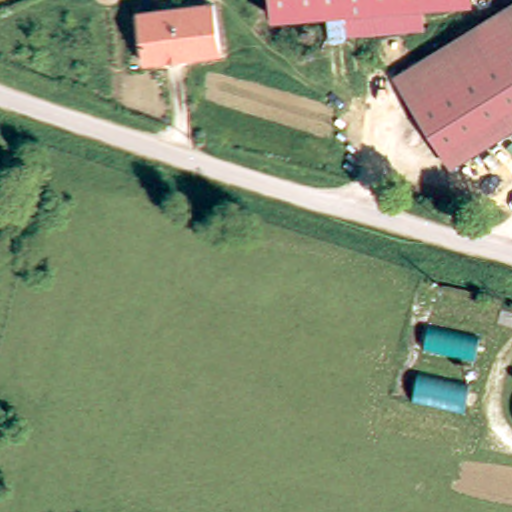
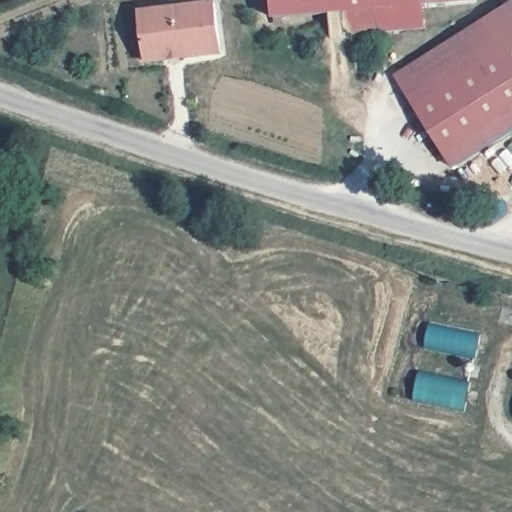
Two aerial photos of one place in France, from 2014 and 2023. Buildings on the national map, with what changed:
unchanged [(276,19),(275,0),(476,0),(476,3),(427,6),(331,15),(276,19)]
unchanged [(512,0),(512,126),(449,164),(393,72),(511,0),(512,0)]
unchanged [(427,6),(429,30),(333,38),(331,15),(427,6)]
unchanged [(213,10),(219,58),(143,67),(137,19),(213,10)]
unchanged [(482,341),(477,367),(424,356),(430,330),(482,341)]
unchanged [(460,419),(409,404),(418,377),(468,392),(460,419)]

